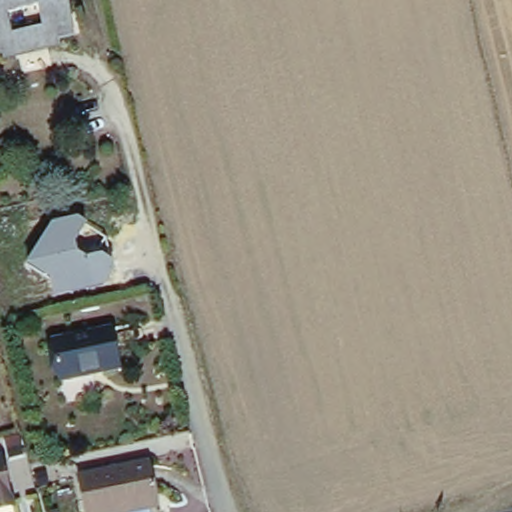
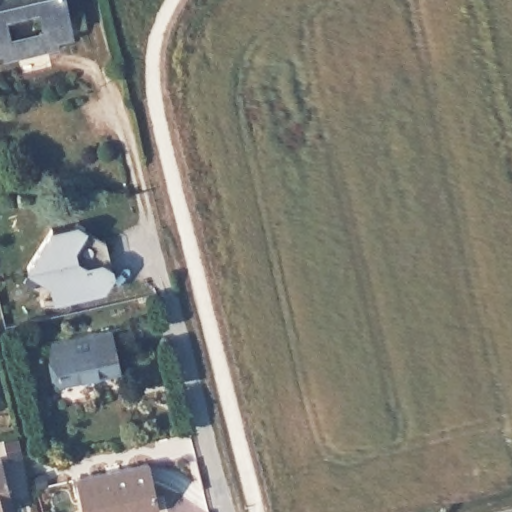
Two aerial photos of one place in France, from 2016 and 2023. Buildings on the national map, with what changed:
unchanged [(0,57),(0,22),(4,39),(11,38),(29,35),(35,33),(30,14),(0,20),(0,0),(52,0),(64,39),(51,41),(53,51),(34,54),(16,57),(1,60),(0,57)]
unchanged [(50,226),(78,220),(87,227),(76,244),(77,254),(86,258),(102,256),(112,264),(114,273),(105,287),(54,299),(51,282),(26,266),(50,226)]
unchanged [(110,330),(118,371),(60,385),(51,343),(110,330)]
unchanged [(0,504),(0,455),(6,453),(14,483),(13,486),(16,500),(0,504)]
unchanged [(141,466),(150,510),(142,512),(79,512),(72,482),(141,466)]

